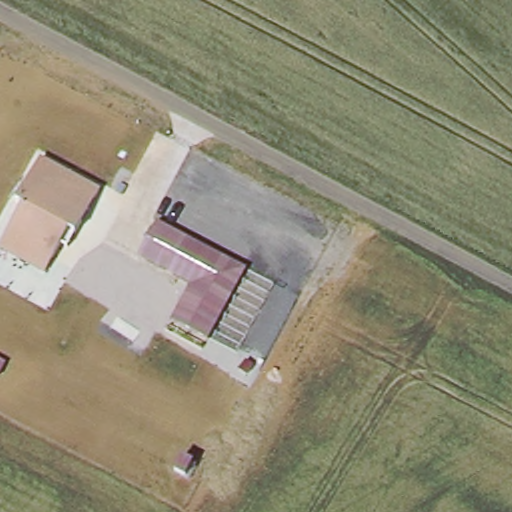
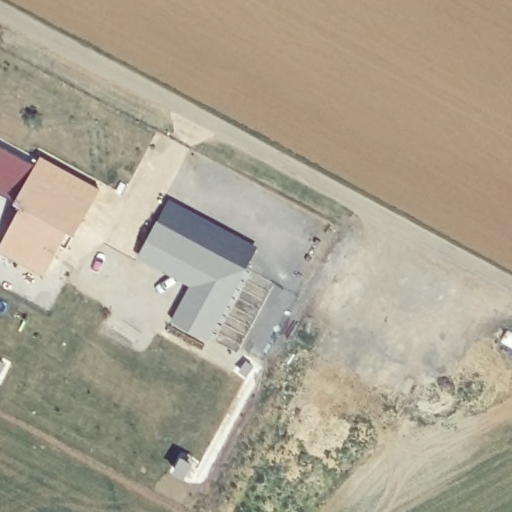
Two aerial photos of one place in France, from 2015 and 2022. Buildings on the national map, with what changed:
new [(0,192),(0,145),(40,165),(20,203),(0,192)]
unchanged [(68,235),(47,276),(0,252),(0,242),(43,158),(102,190),(75,239),(68,235)]
unchanged [(208,340),(173,323),(191,286),(142,258),(159,224),(248,270),(208,340)]

